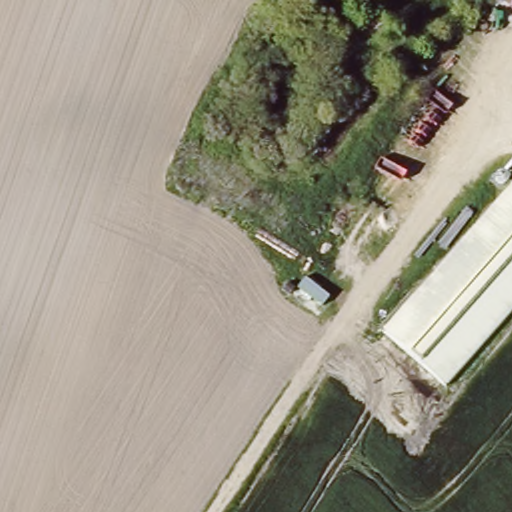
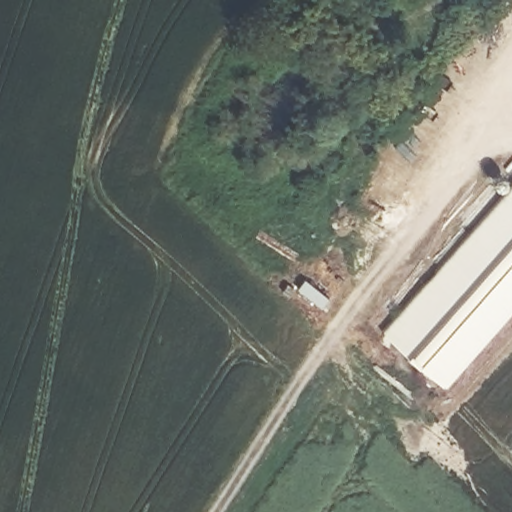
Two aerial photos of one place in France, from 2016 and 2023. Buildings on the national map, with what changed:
unchanged [(379,328),(512,181),(512,306),(442,385),(379,328)]

